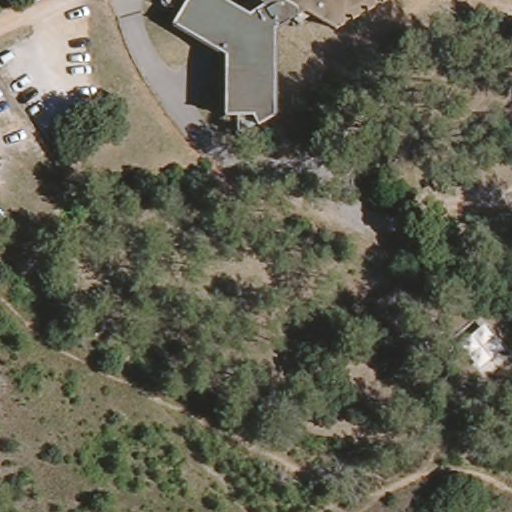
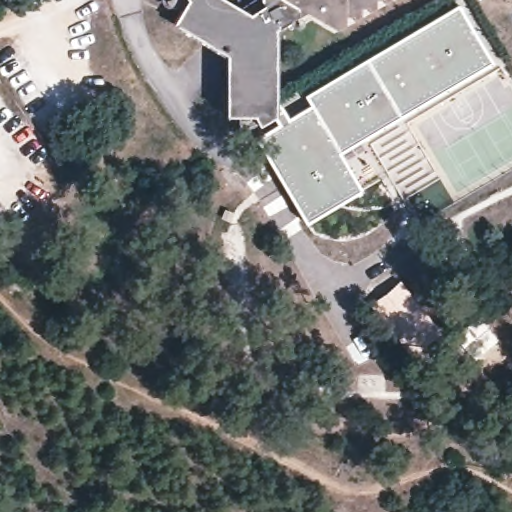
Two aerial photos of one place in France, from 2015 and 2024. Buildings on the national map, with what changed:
unchanged [(274,30),(273,116),(261,125),(238,132),(239,118),(227,118),(226,55),(172,20),(185,2),(184,0),(225,0),(250,13),(262,6),(260,0),(389,0),(338,33),(305,11),(274,30)]
unchanged [(512,1),(511,0),(512,0),(512,1)]
new [(273,98),(288,119),(310,107),(305,97),(460,6),(492,63),(339,152),(362,191),(307,224),(257,140),(280,127),(273,116),(273,98)]
demolished [(407,276),(445,325),(417,348),(377,299),(407,276)]
new [(370,305),(402,282),(442,333),(410,357),(370,305)]
demolished [(484,284),(512,320),(512,329),(487,349),(455,307),(484,284)]

